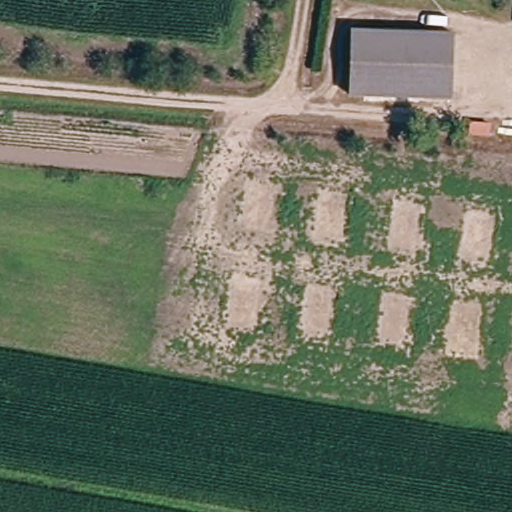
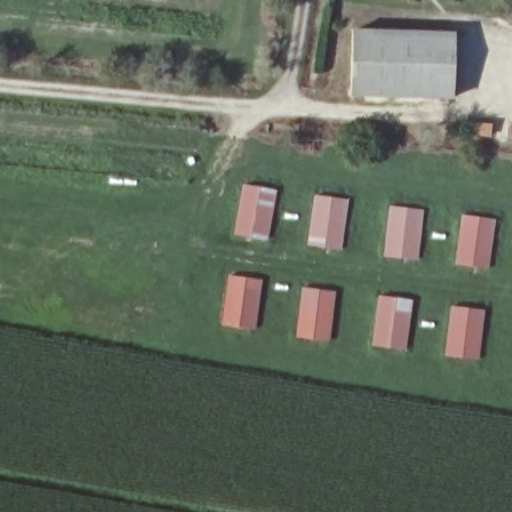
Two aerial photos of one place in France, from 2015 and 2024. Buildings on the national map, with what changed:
unchanged [(453,35),(451,101),(350,98),(352,33),(453,35)]
new [(243,184),(277,189),(268,239),(233,234),(243,184)]
new [(314,194),(349,199),(342,250),(306,244),(314,194)]
new [(389,205),(424,209),(419,260),(383,256),(389,205)]
new [(461,213),(497,219),(489,269),(454,264),(461,213)]
new [(229,274),(263,279),(256,329),(222,324),(229,274)]
new [(302,285),(337,290),(331,342),(295,338),(302,285)]
new [(379,294),(414,299),(406,351),(371,346),(379,294)]
new [(450,304),(486,309),(479,360),(444,356),(450,304)]

